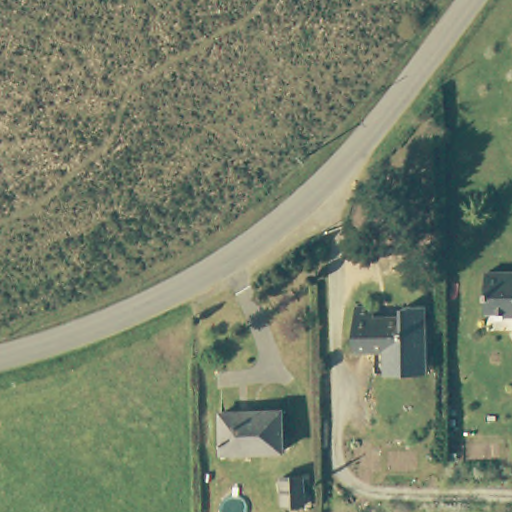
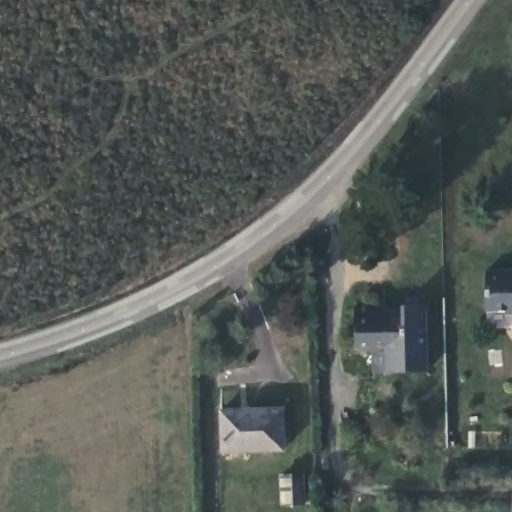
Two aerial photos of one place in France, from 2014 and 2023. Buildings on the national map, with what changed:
unchanged [(488,268),(512,268),(512,307),(489,308),(488,268)]
unchanged [(370,343),(353,343),(352,302),(370,302),(370,312),(401,312),(401,302),(422,303),(423,367),(371,366),(370,343)]
unchanged [(226,411),(285,412),(285,450),(226,449),(226,411)]
unchanged [(304,476),(304,503),(284,504),(282,477),(304,476)]

